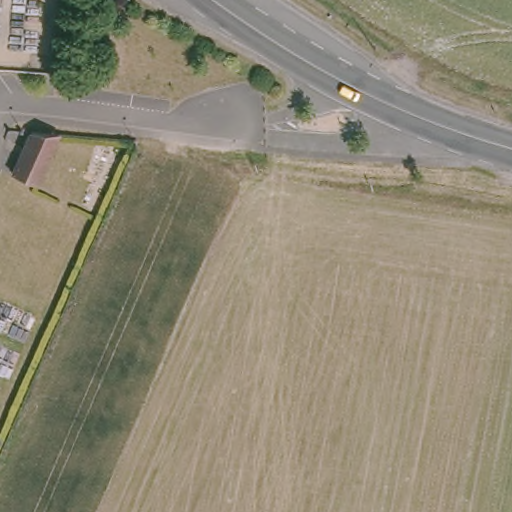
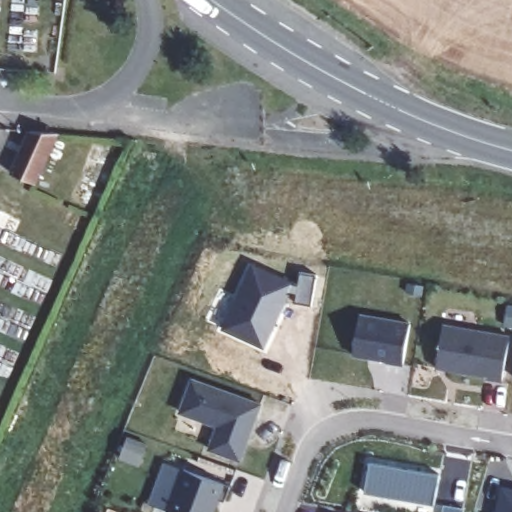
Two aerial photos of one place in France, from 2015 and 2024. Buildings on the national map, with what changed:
unchanged [(40,176),(16,166),(34,125),(63,126),(40,176)]
new [(299,283),(300,272),(316,274),(311,303),(296,301),(298,293),(291,292),(265,347),(223,328),(253,262),(299,283)]
new [(412,322),(403,366),(387,363),(387,360),(353,355),(361,313),(412,322)]
new [(473,376),(473,374),(437,367),(444,325),(510,337),(502,382),(473,376)]
new [(240,460),(210,448),(218,425),(181,411),(193,379),(261,404),(240,460)]
new [(439,475),(434,505),(366,492),(371,462),(439,475)]
new [(171,503),(167,502),(181,466),(231,485),(225,501),(220,499),(215,512),(175,512),(168,510),(171,503)]
new [(496,512),(501,485),(512,488),(512,512),(496,512)]

